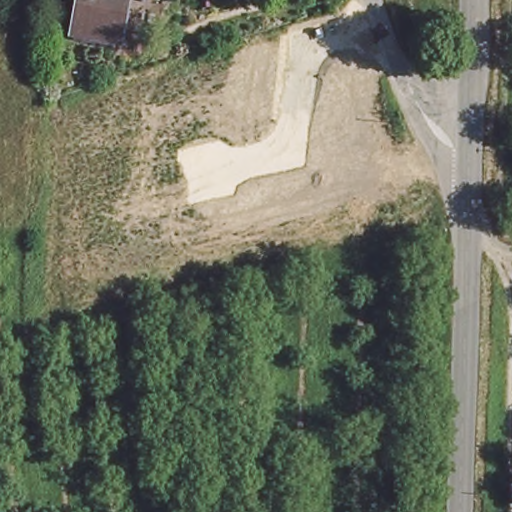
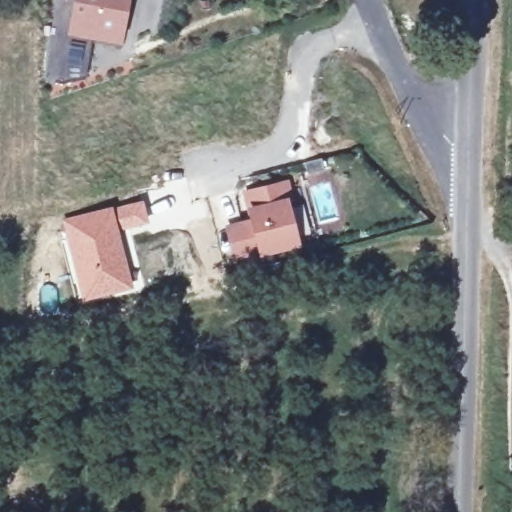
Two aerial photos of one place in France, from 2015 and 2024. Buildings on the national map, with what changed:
unchanged [(73,28),(79,0),(126,0),(117,38),(73,28)]
new [(250,220),(247,207),(244,191),(290,178),(303,224),(296,227),(301,247),(259,258),(235,263),(226,225),(250,220)]
new [(82,302),(60,218),(113,205),(143,199),(149,224),(120,231),(134,289),(82,302)]

